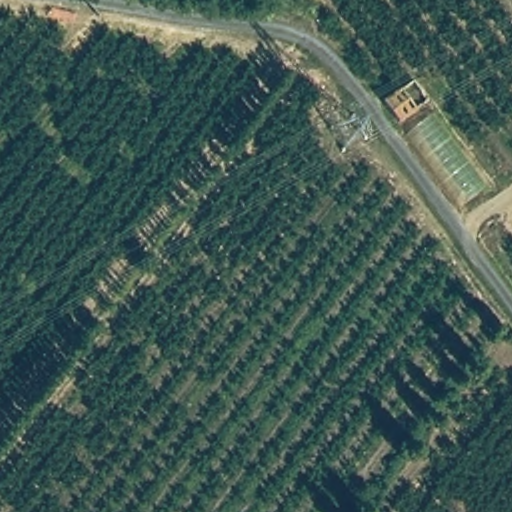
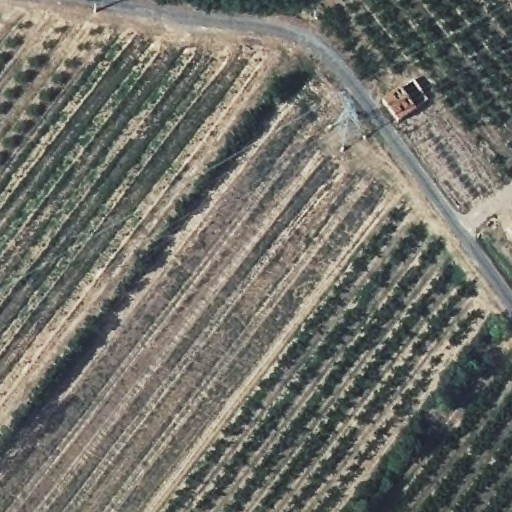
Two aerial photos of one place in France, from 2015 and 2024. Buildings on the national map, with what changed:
unchanged [(398,90),(414,110),(401,118),(388,98),(398,90)]

